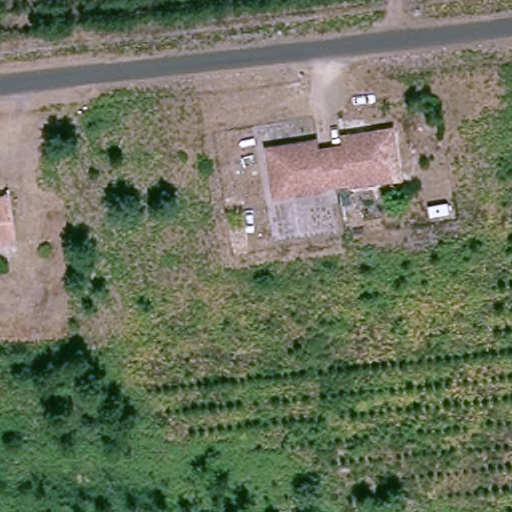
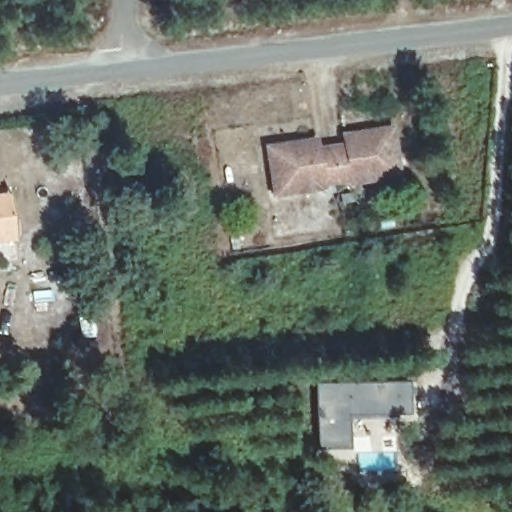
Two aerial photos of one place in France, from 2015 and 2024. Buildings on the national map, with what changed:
unchanged [(353,191),(338,192),(334,159),(348,157),(346,147),(395,140),(400,187),(380,190),(354,194),(353,191)]
unchanged [(297,202),(277,206),(271,158),(319,151),(320,161),(334,159),(338,192),(323,195),(324,199),(297,202)]
unchanged [(0,245),(0,199),(5,199),(12,243),(0,245)]
new [(410,382),(410,416),(349,418),(350,451),(316,452),(314,386),(410,382)]

